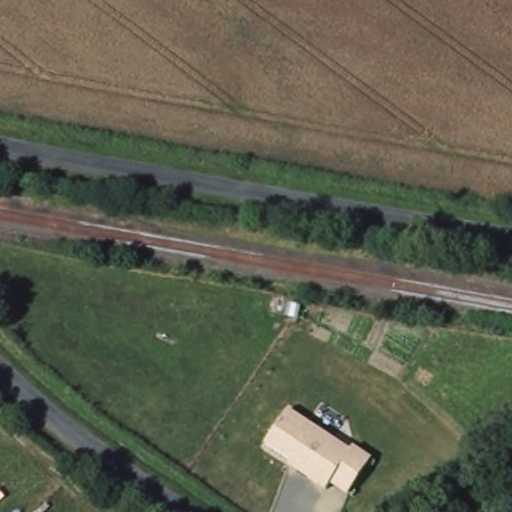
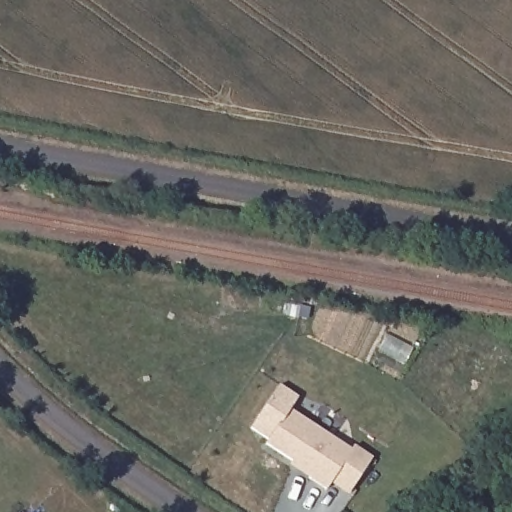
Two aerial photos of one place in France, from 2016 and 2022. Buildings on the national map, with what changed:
unchanged [(291,462),(266,443),(289,409),(353,450),(327,489),(288,467),(291,462)]

